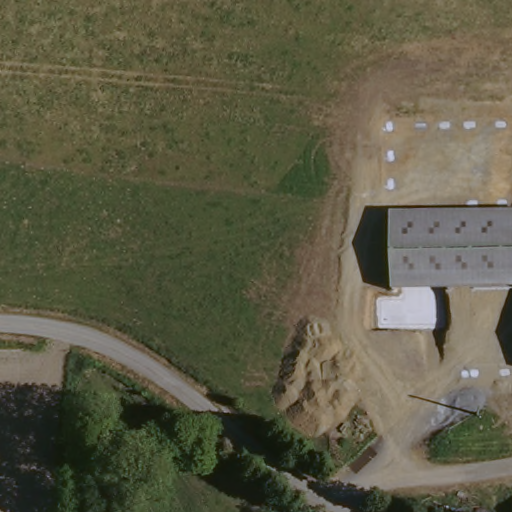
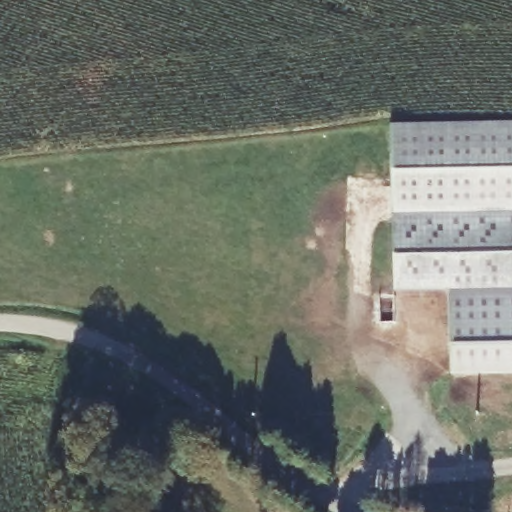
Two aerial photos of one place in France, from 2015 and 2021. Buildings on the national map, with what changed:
new [(392,221),(390,125),(512,121),(512,217),(393,221),(392,221)]
unchanged [(512,217),(512,292),(392,295),(392,221),(512,217)]
new [(512,377),(451,376),(450,293),(512,292),(512,377)]
unchanged [(512,512),(505,512),(505,508),(512,508),(512,512)]

